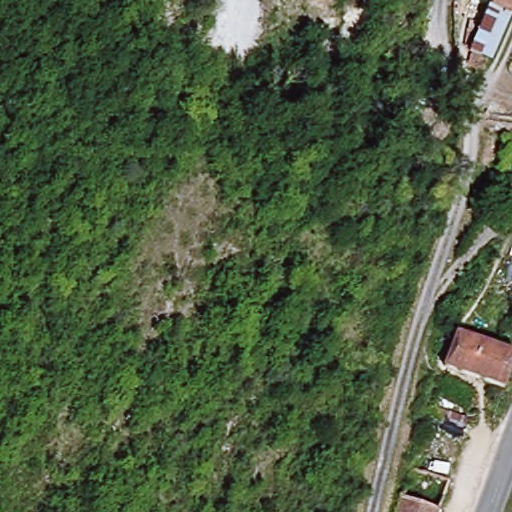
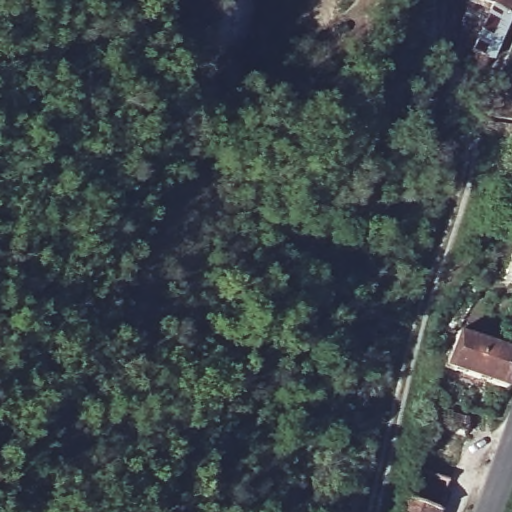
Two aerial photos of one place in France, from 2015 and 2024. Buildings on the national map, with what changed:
unchanged [(477,2),(477,0),(512,0),(512,10),(490,61),(474,52),(490,6),(477,2)]
unchanged [(512,173),(512,194),(506,192),(512,173)]
unchanged [(444,370),(457,335),(512,355),(499,390),(444,370)]
unchanged [(427,425),(463,438),(435,512),(395,512),(427,425)]

